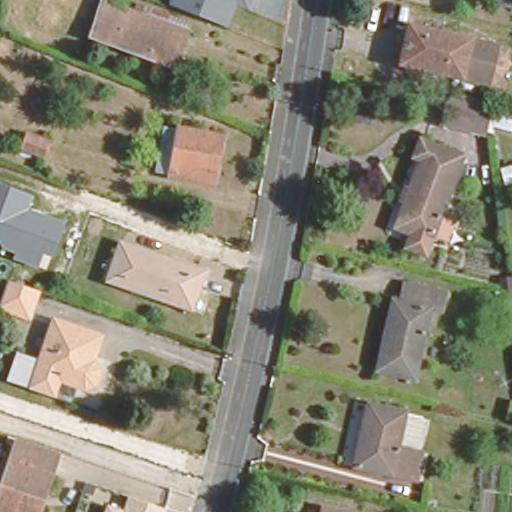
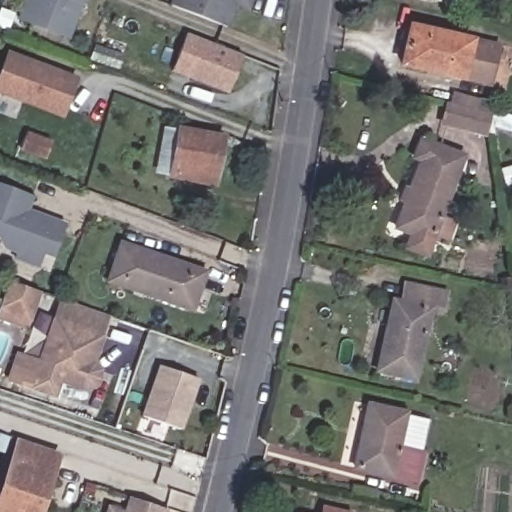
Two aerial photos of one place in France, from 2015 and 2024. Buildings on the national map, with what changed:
new [(68,38),(22,21),(30,0),(82,0),(68,38)]
demolished [(173,66),(87,35),(99,0),(108,0),(185,29),(173,66)]
unchanged [(251,10),(237,6),(230,25),(170,5),(172,0),(255,0),(251,10)]
unchanged [(482,0),(512,0),(512,10),(481,2),(482,0)]
unchanged [(393,57),(402,23),(491,45),(482,80),(393,57)]
new [(185,33),(241,55),(226,94),(170,71),(185,33)]
new [(79,79),(62,119),(0,96),(0,65),(5,50),(79,79)]
unchanged [(438,123),(443,102),(457,102),(460,95),(480,100),(480,108),(488,110),(483,130),(438,123)]
unchanged [(155,173),(161,121),(177,124),(221,131),(216,181),(170,175),(155,173)]
unchanged [(10,154),(15,137),(39,146),(34,162),(10,154)]
unchanged [(455,205),(443,241),(429,239),(424,255),(405,250),(410,230),(396,225),(418,157),(412,155),(420,139),(460,153),(442,200),(455,205)]
unchanged [(60,244),(69,246),(64,259),(44,252),(36,268),(14,258),(15,254),(2,246),(0,239),(0,183),(37,197),(32,210),(65,221),(60,244)]
unchanged [(189,308),(104,280),(117,240),(202,270),(189,308)]
unchanged [(0,310),(0,298),(6,280),(39,291),(29,320),(0,310)]
unchanged [(374,368),(390,302),(396,301),(401,285),(443,294),(440,311),(428,310),(411,377),(374,368)]
unchanged [(11,363),(31,370),(49,317),(96,332),(87,359),(94,364),(98,369),(99,372),(99,376),(97,380),(95,383),(90,386),(86,387),(57,378),(51,395),(26,386),(6,380),(11,363)]
new [(141,417),(158,365),(200,380),(182,430),(141,417)]
unchanged [(351,462),(365,403),(417,417),(402,476),(351,462)]
unchanged [(31,498),(39,500),(34,512),(0,512),(0,481),(16,440),(57,456),(43,491),(35,489),(31,498)]
unchanged [(105,512),(109,504),(124,510),(127,495),(165,508),(164,512),(105,512)]
unchanged [(318,510),(320,505),(350,512),(295,512),(296,505),(318,510)]

